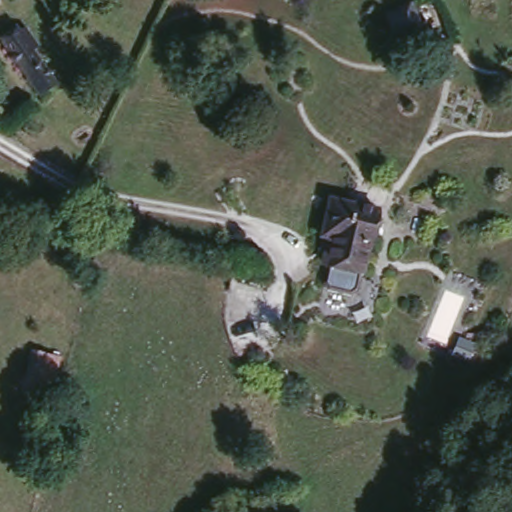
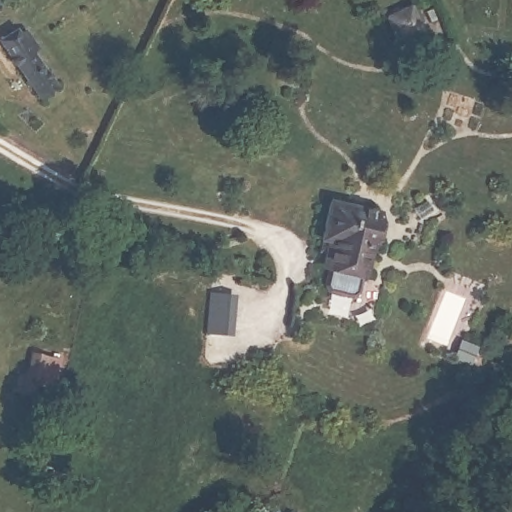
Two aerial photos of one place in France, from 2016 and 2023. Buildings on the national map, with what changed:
unchanged [(418,6),(428,28),(408,37),(397,16),(418,6)]
unchanged [(39,101),(1,44),(19,33),(24,41),(30,37),(38,48),(31,52),(56,89),(39,101)]
unchanged [(322,267),(329,241),(317,237),(325,194),(383,207),(367,277),(322,267)]
unchanged [(357,295),(326,289),(330,269),(361,276),(357,295)]
new [(234,290),(234,328),(209,328),(209,290),(234,290)]
unchanged [(35,346),(68,353),(59,390),(28,384),(35,346)]

